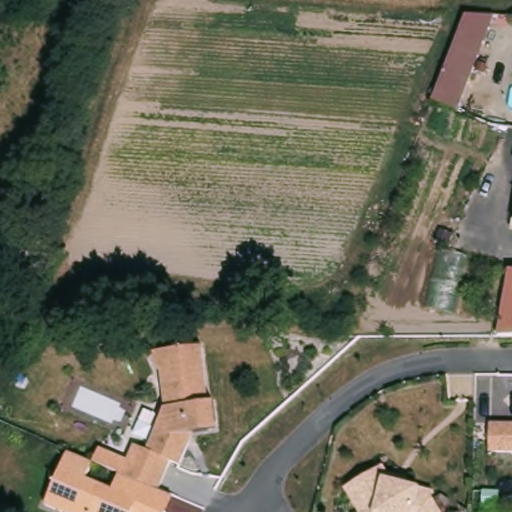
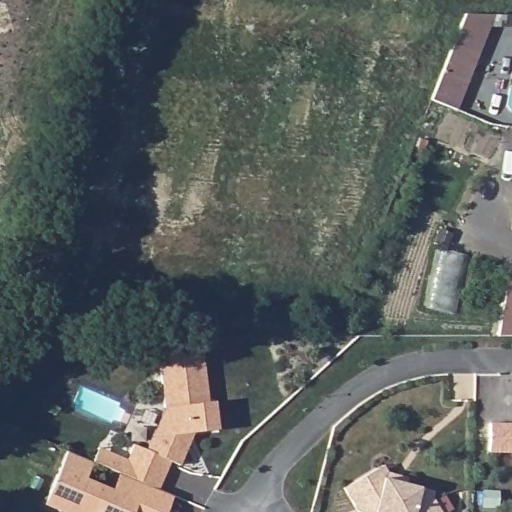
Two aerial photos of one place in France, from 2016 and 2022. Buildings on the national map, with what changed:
unchanged [(431,98),(460,19),(462,13),(492,14),(457,108),(456,109),(430,99),(431,98)]
unchanged [(512,335),(504,334),(512,269),(512,335)]
unchanged [(150,486),(124,474),(117,489),(91,479),(97,462),(92,461),(97,451),(126,461),(132,447),(145,452),(162,411),(153,354),(199,347),(206,403),(212,402),(215,431),(192,433),(177,466),(168,463),(157,489),(150,486)]
unchanged [(512,456),(495,455),(495,422),(512,422),(512,456)]
unchanged [(92,461),(97,462),(91,479),(117,489),(124,474),(157,489),(175,498),(170,512),(69,512),(47,504),(69,451),(92,461)]
unchanged [(394,482),(439,490),(436,499),(442,512),(358,512),(349,485),(388,463),(394,482)]

